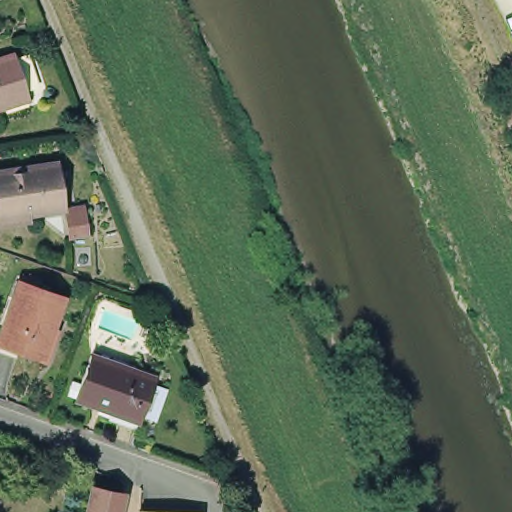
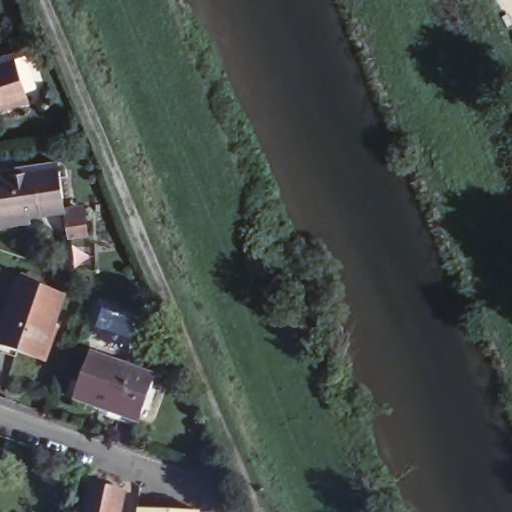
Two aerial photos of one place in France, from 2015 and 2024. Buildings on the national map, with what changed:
unchanged [(21,98),(0,104),(0,55),(7,52),(21,98)]
unchanged [(0,163),(52,156),(57,203),(21,208),(22,216),(0,218),(0,163)]
unchanged [(34,357),(0,346),(0,310),(11,278),(56,293),(34,357)]
unchanged [(137,419),(73,395),(90,351),(153,374),(137,419)]
unchanged [(126,490),(122,512),(81,512),(89,480),(126,490)]
unchanged [(192,507),(191,512),(129,512),(130,502),(192,507)]

